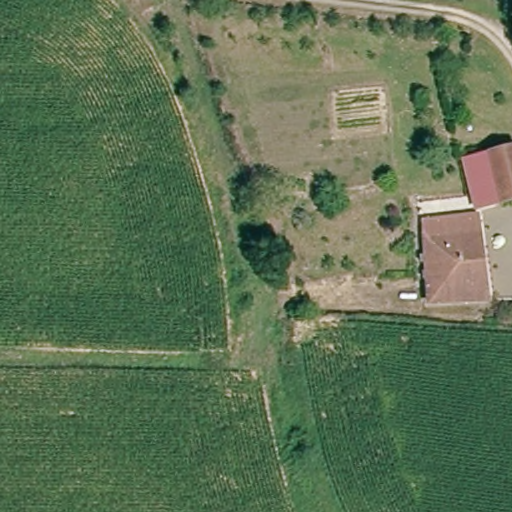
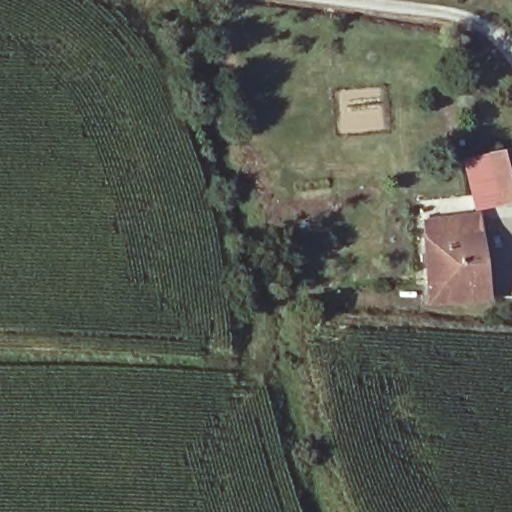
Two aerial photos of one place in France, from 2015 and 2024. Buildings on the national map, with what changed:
unchanged [(512,157),(512,207),(482,212),(471,214),(466,167),(496,161),(512,157)]
unchanged [(418,219),(469,214),(471,235),(474,235),(479,297),(424,302),(418,219)]

